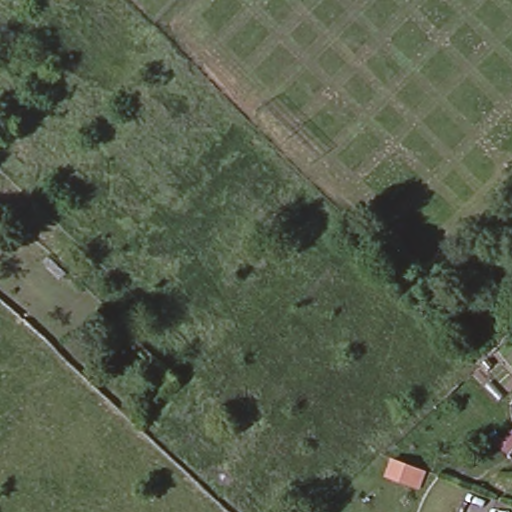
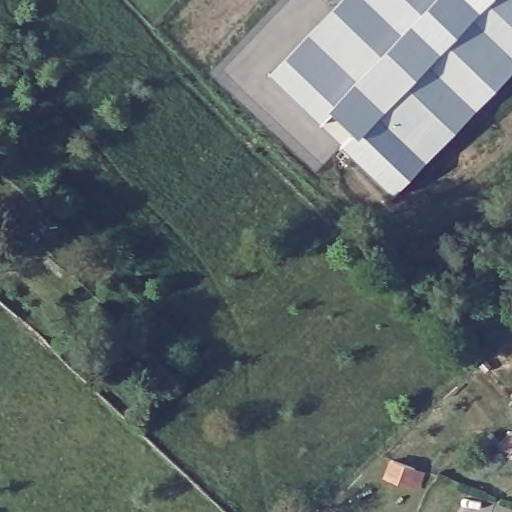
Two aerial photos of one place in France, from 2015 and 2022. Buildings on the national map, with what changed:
new [(468,10),(478,0),(512,0),(512,66),(487,91),(390,189),(269,72),(339,0),(457,0),(468,10)]

